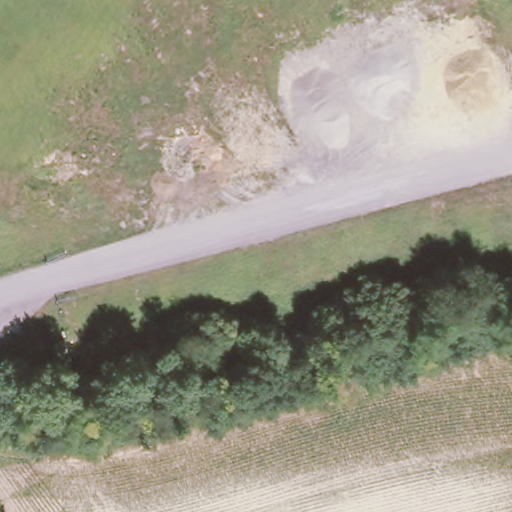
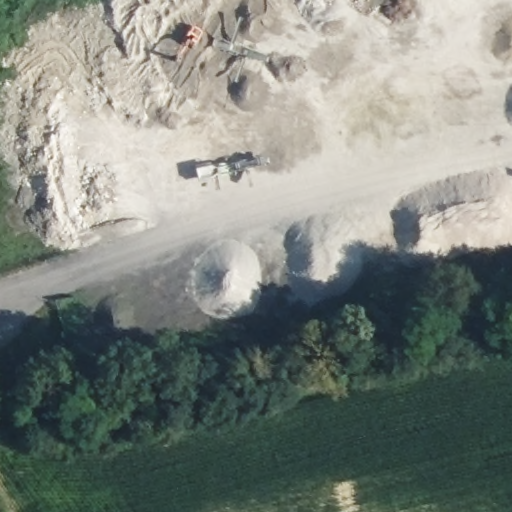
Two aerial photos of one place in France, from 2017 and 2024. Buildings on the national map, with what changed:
unchanged [(67,357),(56,360),(53,349),(50,338),(60,335),(64,345),(67,357)]

